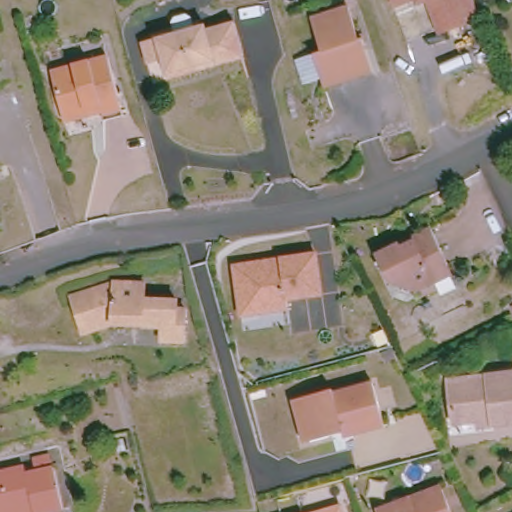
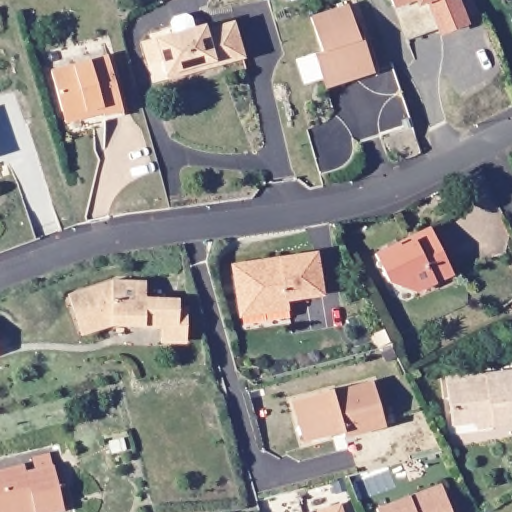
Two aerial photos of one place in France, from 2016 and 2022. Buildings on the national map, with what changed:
unchanged [(437,35),(435,30),(403,40),(391,0),(454,0),(462,21),(463,26),(437,35)]
unchanged [(325,86),(314,54),(322,51),(311,16),(349,5),(360,40),(364,38),(373,70),(325,86)]
unchanged [(163,71),(160,55),(143,59),(138,37),(172,29),(170,19),(174,12),(184,9),(190,12),(192,25),(203,22),(205,28),(233,20),(242,56),(213,64),(165,75),(163,71)]
unchanged [(58,111),(48,70),(105,56),(120,115),(101,120),(99,111),(61,121),(58,111)]
unchanged [(432,281),(413,290),(408,280),(399,285),(385,280),(372,254),(428,227),(445,264),(449,273),(432,281)]
unchanged [(233,284),(230,265),(314,254),(319,295),(285,299),(285,308),(257,312),(238,315),(233,284)]
unchanged [(115,282),(145,282),(145,299),(177,300),(177,308),(185,310),(185,340),(162,340),(162,326),(145,325),(143,319),(136,318),(134,324),(110,323),(83,332),(72,297),(115,282)]
unchanged [(475,423),(454,430),(452,425),(439,388),(477,375),(507,365),(509,370),(512,379),(512,417),(492,424),(477,429),(475,423)]
unchanged [(340,437),(338,430),(330,431),(327,437),(305,442),(301,427),(293,422),(287,401),(328,391),(328,394),(368,384),(379,428),(340,437)]
unchanged [(20,471),(21,477),(50,471),(58,512),(0,512),(0,476),(20,471)]
unchanged [(440,488),(448,512),(375,512),(375,511),(440,488)]
unchanged [(341,512),(321,512),(340,507),(341,512)]

